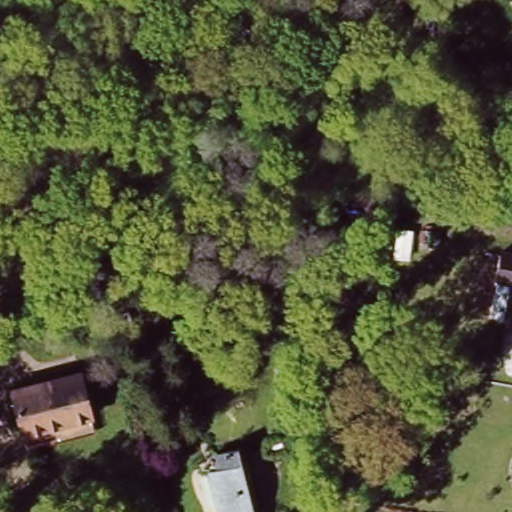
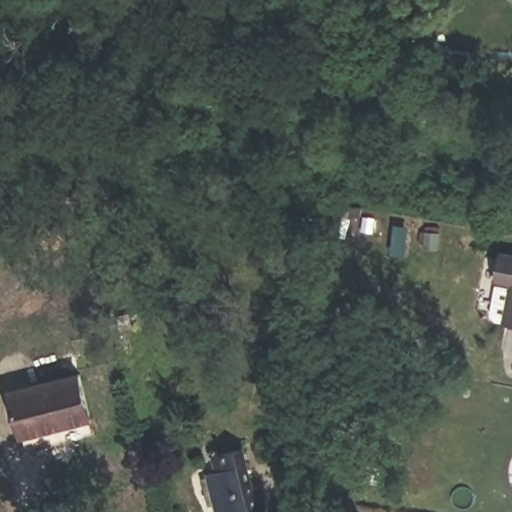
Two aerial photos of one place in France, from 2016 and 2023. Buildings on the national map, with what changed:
unchanged [(512,281),(492,277),(497,250),(512,252),(512,319),(505,318),(512,281)]
unchanged [(12,394),(80,376),(91,417),(23,436),(12,394)]
unchanged [(222,467),(219,452),(250,442),(270,512),(235,512),(233,512),(225,512),(214,469),(222,467)]

